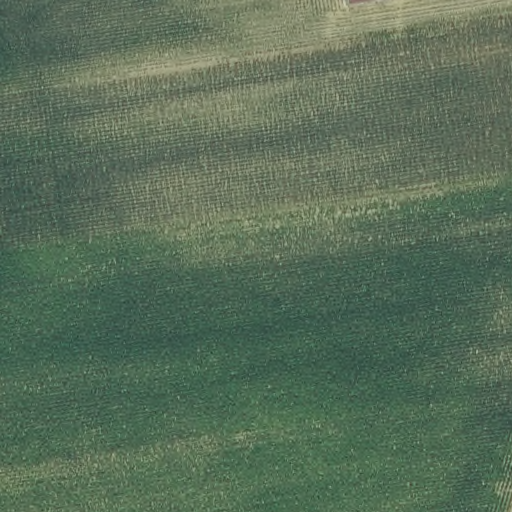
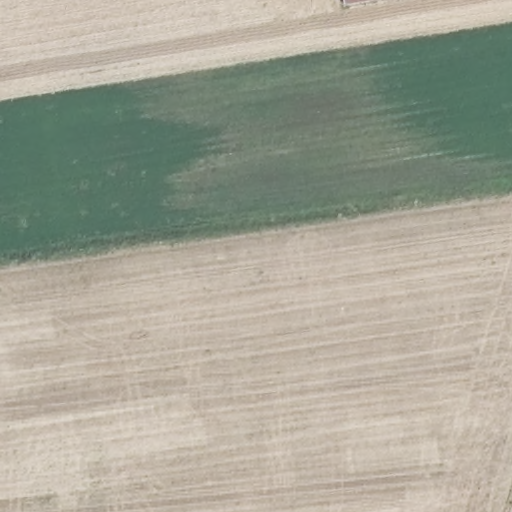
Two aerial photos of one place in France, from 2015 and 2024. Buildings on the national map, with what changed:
unchanged [(346,0),(378,0),(347,5),(346,0)]

